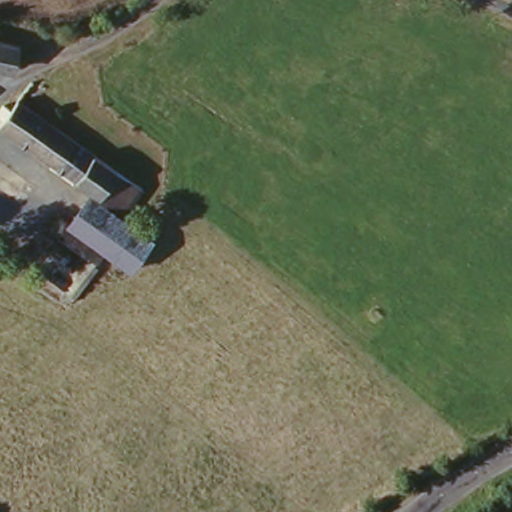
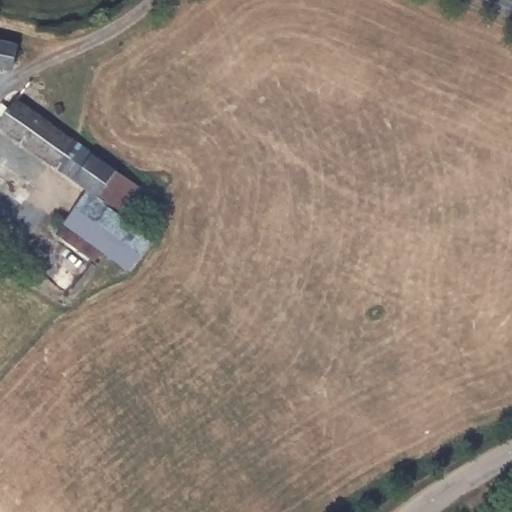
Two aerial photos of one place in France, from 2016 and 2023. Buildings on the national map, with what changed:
unchanged [(12,74),(0,71),(0,40),(20,45),(12,74)]
unchanged [(107,174),(91,195),(0,129),(0,108),(0,97),(4,92),(110,170),(107,174)]
unchanged [(136,195),(116,219),(89,198),(91,195),(107,174),(136,195)]
unchanged [(50,239),(60,229),(89,198),(116,219),(149,244),(123,275),(99,258),(90,268),(50,239)]

